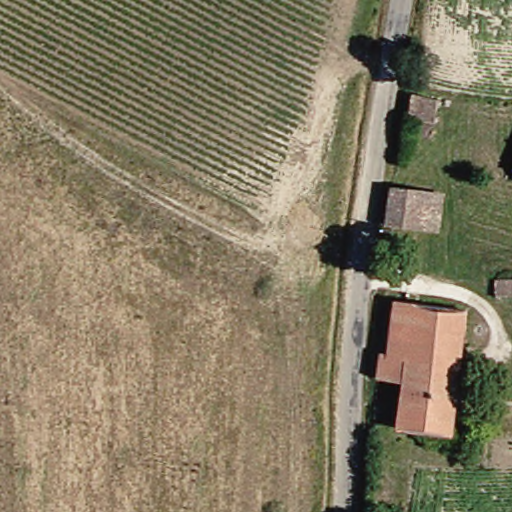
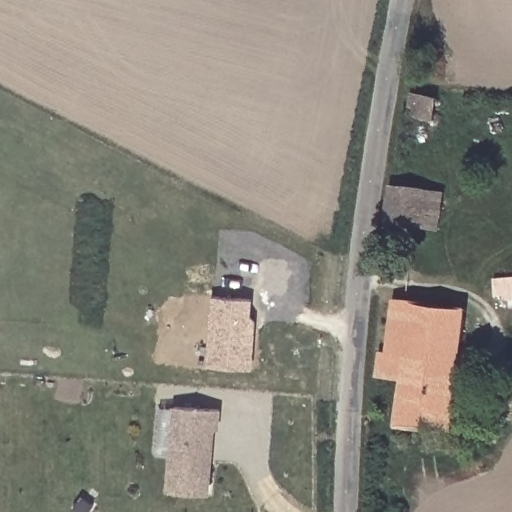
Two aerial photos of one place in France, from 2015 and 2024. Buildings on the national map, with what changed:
unchanged [(407,95),(436,100),(432,124),(436,124),(434,143),(409,140),(412,122),(404,119),(407,95)]
unchanged [(385,224),(387,193),(436,197),(435,229),(385,224)]
unchanged [(491,279),(512,279),(512,296),(491,297),(491,279)]
new [(253,315),(258,319),(254,368),(208,366),(212,295),(255,297),(253,315)]
unchanged [(401,429),(402,391),(381,389),(382,363),(389,362),(394,305),(462,311),(456,433),(401,429)]
new [(221,409),(220,430),(215,430),(210,495),(166,491),(173,406),(221,409)]

